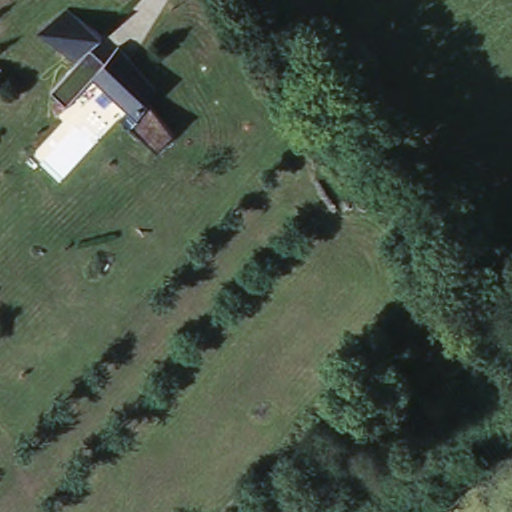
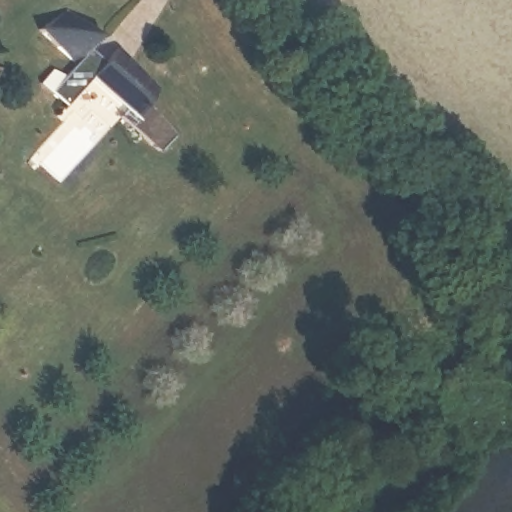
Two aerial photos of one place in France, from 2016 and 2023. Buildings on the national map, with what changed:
unchanged [(100,41),(87,54),(102,67),(116,53),(156,92),(152,100),(177,136),(158,153),(131,129),(137,122),(93,80),(66,106),(51,91),(77,65),(41,29),(68,10),(100,41)]

